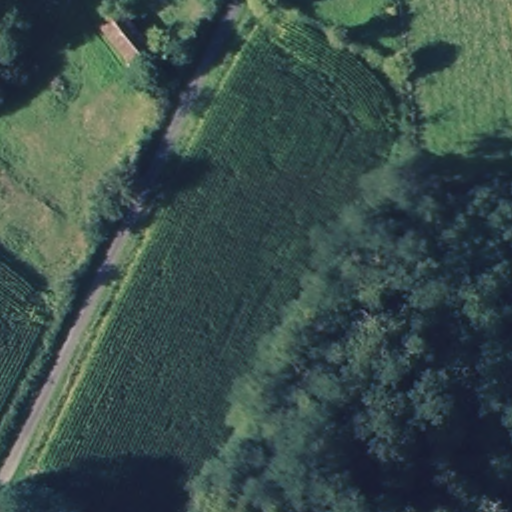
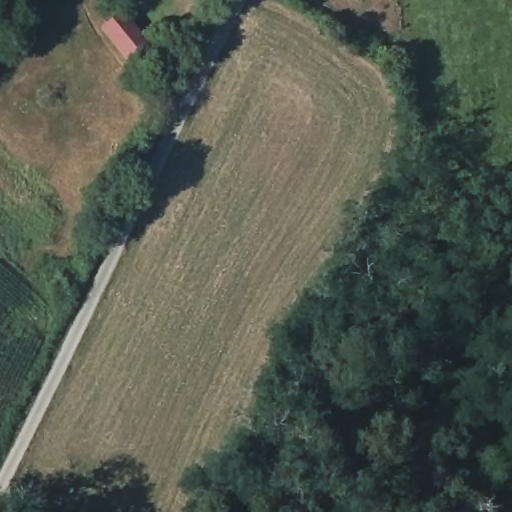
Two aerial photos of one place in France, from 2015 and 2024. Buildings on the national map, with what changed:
unchanged [(106,27),(128,12),(157,53),(135,69),(106,27)]

